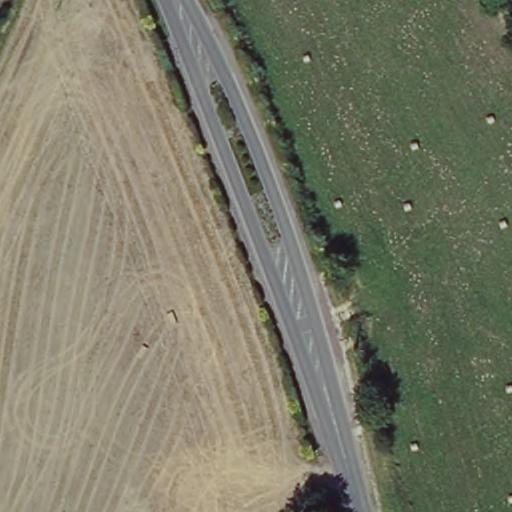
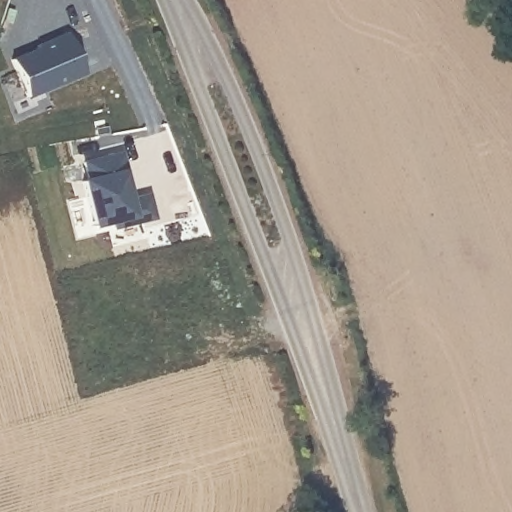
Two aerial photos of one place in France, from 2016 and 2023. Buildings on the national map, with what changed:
new [(39,46),(38,44),(68,30),(85,71),(28,95),(12,57),(39,46)]
new [(115,226),(113,220),(94,225),(83,179),(89,177),(84,160),(122,150),(132,187),(128,189),(130,197),(149,193),(155,216),(115,226)]

